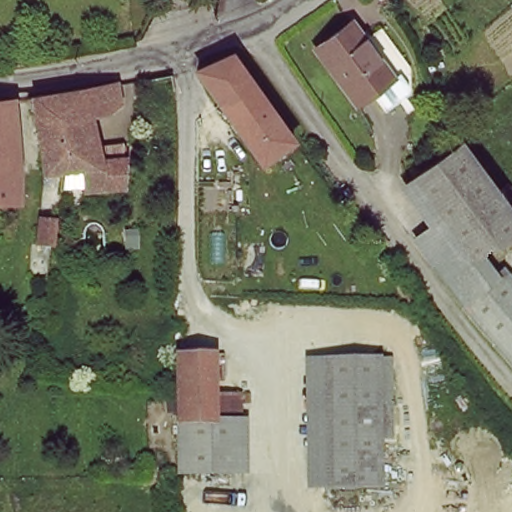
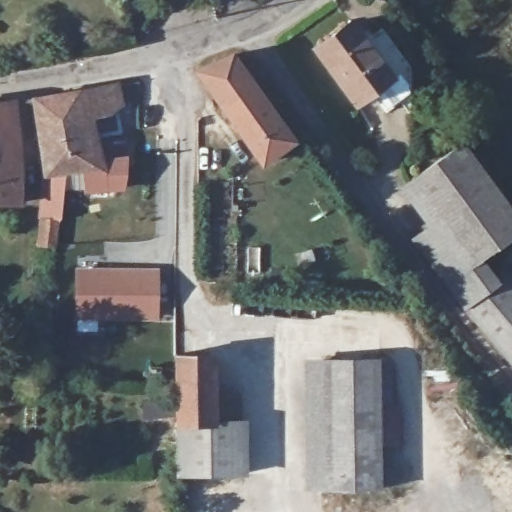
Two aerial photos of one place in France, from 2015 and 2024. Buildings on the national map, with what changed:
unchanged [(351,21),(392,79),(355,104),(315,46),(351,21)]
unchanged [(232,53),(291,139),(262,161),(198,68),(232,53)]
unchanged [(39,101),(83,95),(120,88),(124,104),(114,114),(88,118),(96,151),(126,149),(127,163),(130,163),(128,191),(68,194),(67,203),(54,202),(50,177),(39,101)]
unchanged [(8,125),(10,147),(0,148),(0,101),(19,99),(21,124),(8,125)]
unchanged [(10,147),(8,125),(21,124),(24,169),(0,168),(0,148),(10,147)]
unchanged [(512,211),(512,232),(479,256),(470,263),(440,222),(410,181),(462,142),(512,211)]
unchanged [(30,170),(29,202),(0,200),(0,168),(24,169),(30,170)]
unchanged [(57,219),(54,244),(38,242),(41,217),(57,219)]
unchanged [(497,281),(464,307),(414,241),(440,222),(470,263),(479,256),(497,281)]
new [(158,267),(159,321),(74,321),(74,265),(158,267)]
unchanged [(464,307),(497,281),(504,276),(512,287),(512,365),(464,307)]
unchanged [(301,487),(299,358),(317,358),(319,487),(301,487)]
unchanged [(319,487),(317,358),(374,358),(375,487),(319,487)]
unchanged [(383,358),(385,487),(375,487),(374,358),(383,358)]
unchanged [(214,367),(214,399),(240,399),(241,478),(177,478),(176,367),(214,367)]

